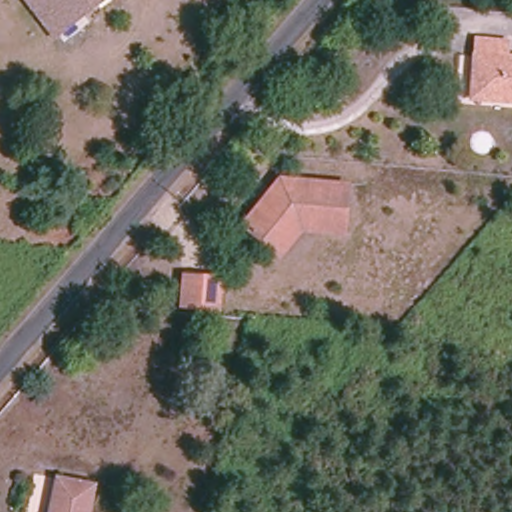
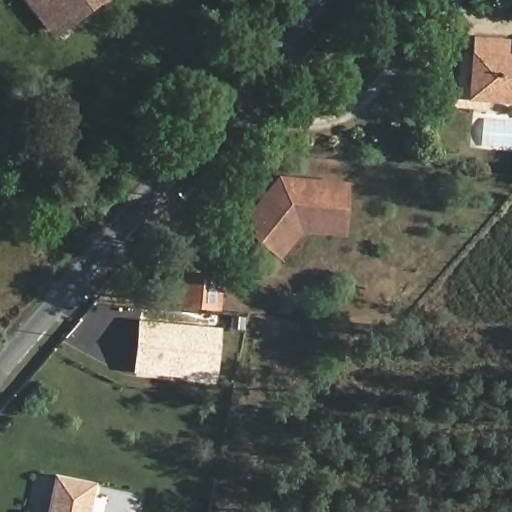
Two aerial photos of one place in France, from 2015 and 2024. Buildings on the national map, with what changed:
unchanged [(50,32),(24,0),(89,0),(50,32)]
unchanged [(469,91),(474,43),(504,47),(503,59),(512,60),(512,106),(504,105),(468,102),(469,91)]
unchanged [(293,218),(270,242),(244,219),(278,175),(349,180),(344,221),(293,218)]
unchanged [(343,233),(300,233),(283,252),(270,242),(293,218),(344,221),(343,233)]
unchanged [(182,304),(184,272),(217,274),(214,307),(182,304)]
new [(164,368),(163,377),(133,374),(138,322),(219,330),(215,372),(164,368)]
unchanged [(88,512),(49,512),(55,481),(93,488),(88,512)]

